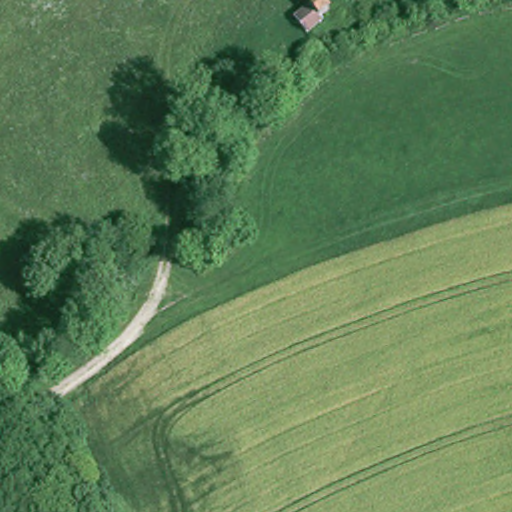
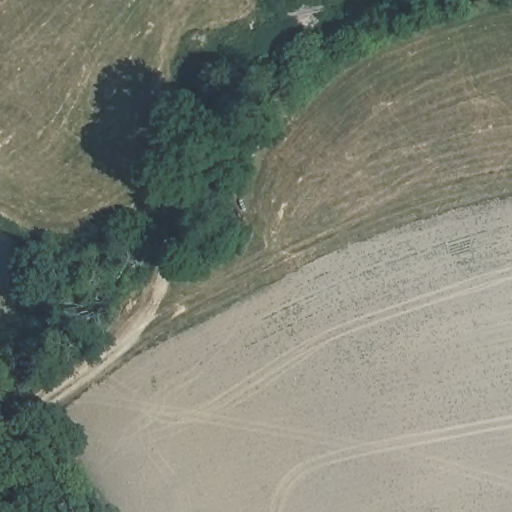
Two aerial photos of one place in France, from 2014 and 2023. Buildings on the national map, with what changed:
unchanged [(297,22),(319,1),(331,14),(309,35),(297,22)]

